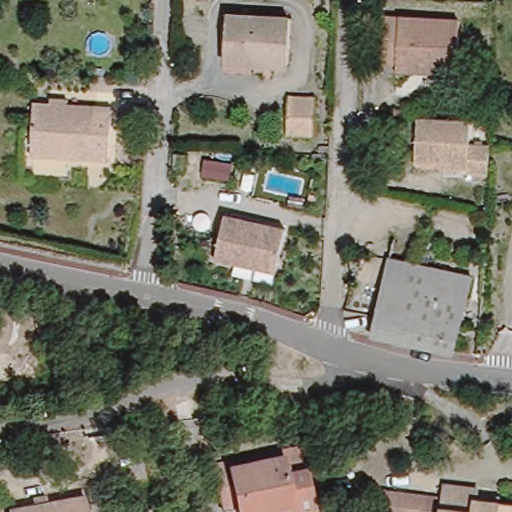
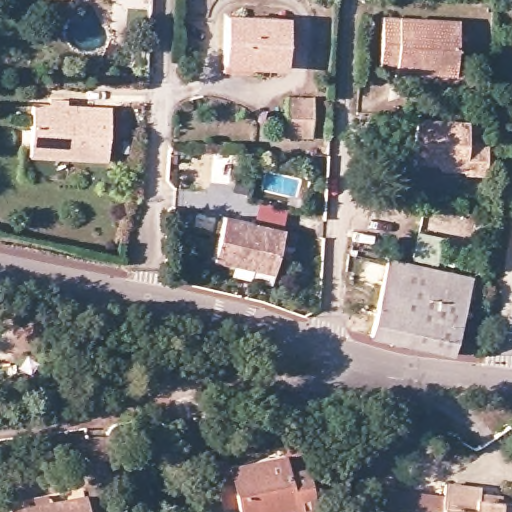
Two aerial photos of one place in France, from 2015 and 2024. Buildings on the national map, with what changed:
unchanged [(413,66),(413,74),(387,72),(387,62),(374,61),(375,16),(453,22),(452,59),(413,56),(413,66)]
unchanged [(217,23),(283,28),(280,73),(264,72),(215,69),(217,23)]
unchanged [(28,146),(30,104),(46,105),(46,97),(62,99),(61,106),(108,110),(104,162),(84,161),(27,157),(28,146)]
unchanged [(281,136),(281,104),(308,105),(308,137),(281,136)]
unchanged [(456,172),(457,164),(409,159),(410,120),(461,124),(460,145),(479,146),(478,175),(456,172)]
unchanged [(214,256),(224,213),(284,229),(274,267),(273,271),(246,265),(214,256)]
unchanged [(389,257),(464,277),(444,357),(366,338),(389,257)]
unchanged [(259,512),(217,512),(217,511),(214,512),(199,512),(190,467),(208,464),(209,471),(258,455),(257,452),(279,448),(281,455),(291,505),(292,511),(290,512),(269,512),(269,510),(259,512)]
unchanged [(379,480),(439,491),(435,512),(376,512),(373,511),(379,480)]
unchanged [(441,482),(477,488),(475,498),(512,505),(512,512),(435,512),(439,491),(441,482)]
unchanged [(79,493),(83,512),(8,512),(7,506),(79,493)]

